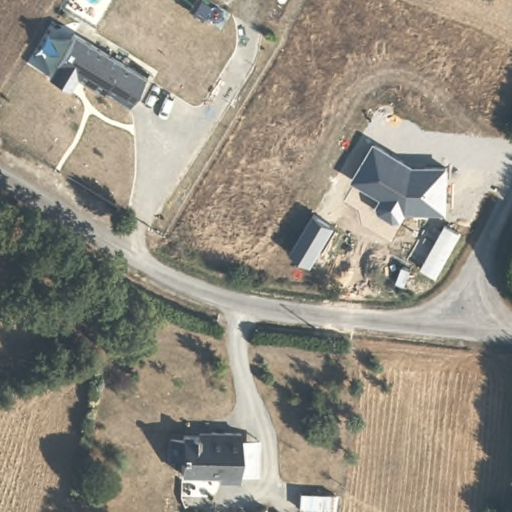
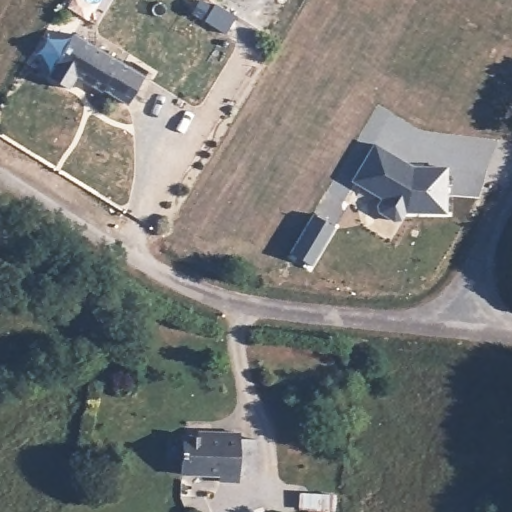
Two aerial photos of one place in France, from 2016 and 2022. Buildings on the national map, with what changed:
unchanged [(49,71),(75,29),(144,74),(127,101),(103,85),(101,87),(76,71),(68,83),(49,71)]
unchanged [(449,213),(408,213),(402,222),(393,222),(381,212),(379,203),(383,198),(353,181),(377,144),(416,166),(449,166),(449,213)]
unchanged [(313,264),(293,252),(316,215),(336,227),(313,264)]
unchanged [(240,474),(221,474),(220,467),(184,468),(182,453),(171,453),(172,431),(185,432),(185,428),(215,428),(215,423),(242,424),(240,474)]

